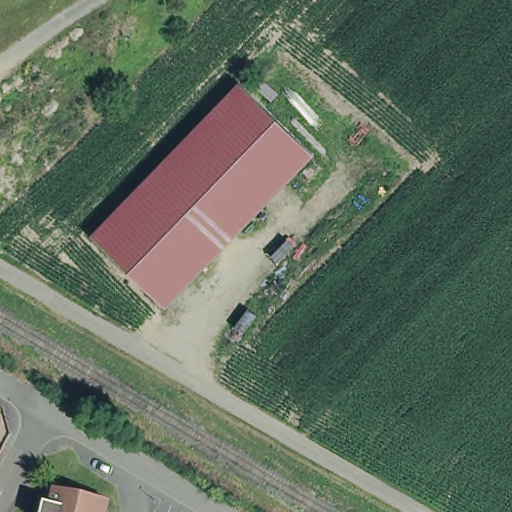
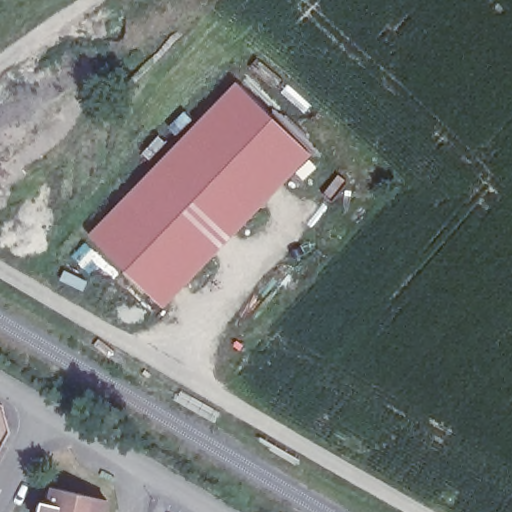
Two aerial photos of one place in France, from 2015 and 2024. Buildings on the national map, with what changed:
unchanged [(311,156),(163,306),(92,241),(237,87),(311,156)]
unchanged [(51,504),(56,486),(105,501),(102,512),(46,512),(48,505),(51,504)]

